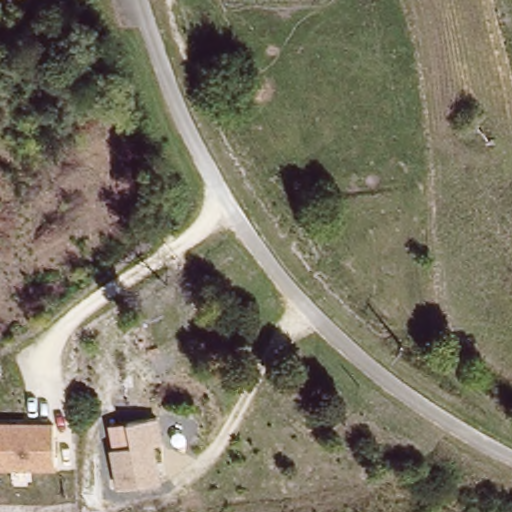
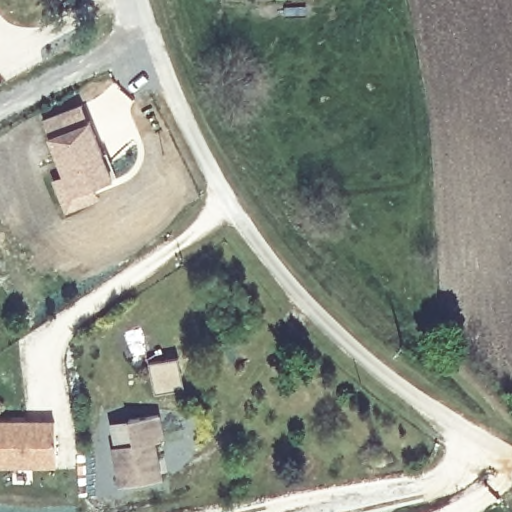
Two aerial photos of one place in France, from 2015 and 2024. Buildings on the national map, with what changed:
new [(114,180),(95,187),(99,197),(66,209),(53,178),(63,173),(41,120),(83,104),(114,180)]
new [(179,357),(185,388),(155,394),(149,363),(179,357)]
unchanged [(165,438),(157,441),(164,479),(117,488),(105,423),(161,413),(165,438)]
unchanged [(62,458),(0,458),(0,415),(63,416),(62,458)]

